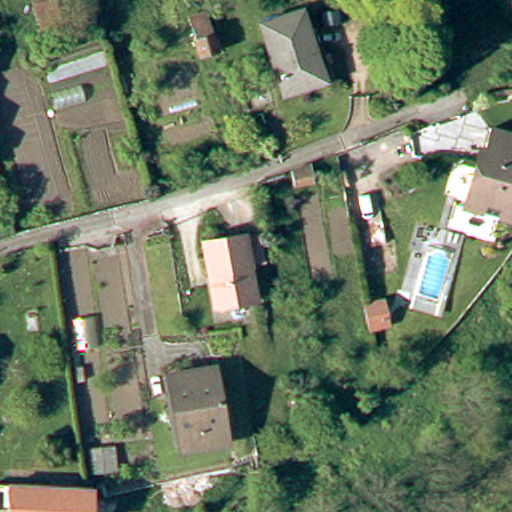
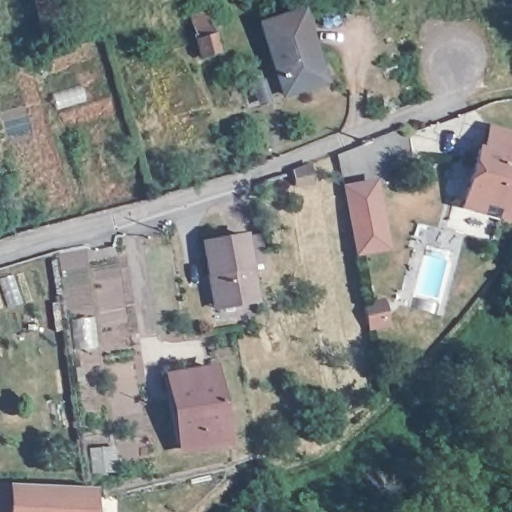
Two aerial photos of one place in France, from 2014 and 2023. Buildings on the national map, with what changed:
unchanged [(201,58),(196,41),(189,18),(207,13),(214,35),(219,52),(201,58)]
unchanged [(267,30),(305,18),(329,86),(289,100),(267,30)]
unchanged [(488,149),(494,128),(512,133),(512,219),(467,208),(483,148),(488,149)]
new [(389,251),(353,257),(341,184),(377,178),(389,251)]
unchanged [(219,279),(214,280),(208,247),(250,240),(262,307),(225,313),(219,279)]
unchanged [(169,387),(215,380),(226,446),(180,454),(169,387)]
unchanged [(108,504),(96,504),(95,512),(15,512),(15,498),(0,497),(0,488),(16,489),(97,493),(108,493),(108,504)]

